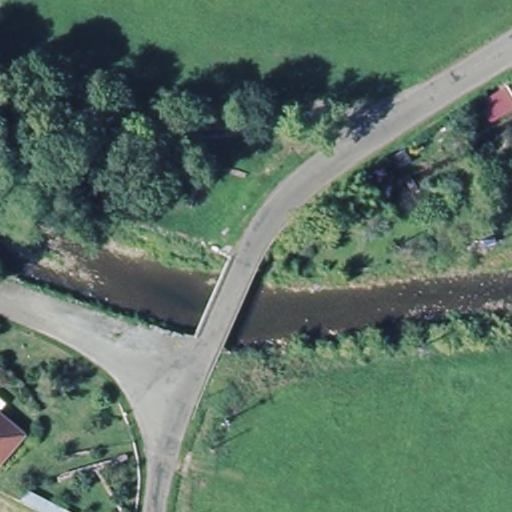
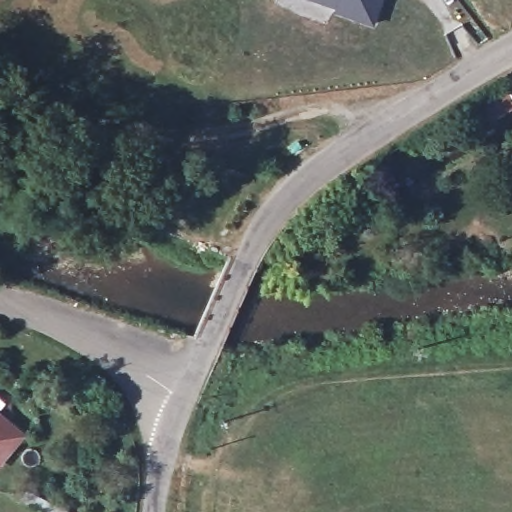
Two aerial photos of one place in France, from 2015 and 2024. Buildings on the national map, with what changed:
new [(373,26),(332,12),(333,8),(312,0),(382,0),(373,26)]
unchanged [(0,391),(12,400),(3,411),(29,432),(1,466),(0,465),(0,391)]

